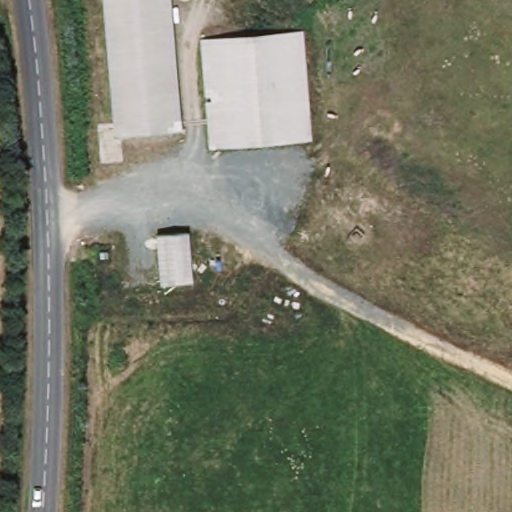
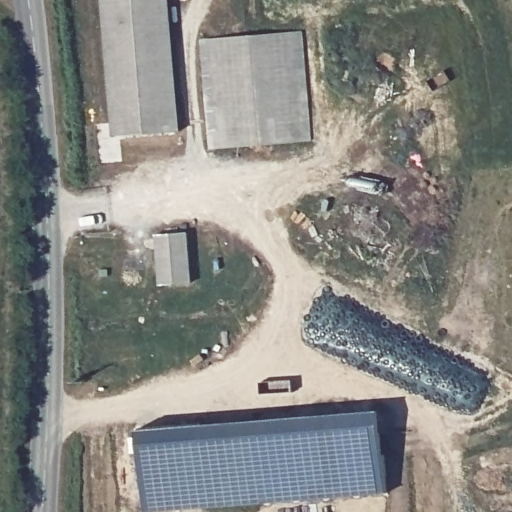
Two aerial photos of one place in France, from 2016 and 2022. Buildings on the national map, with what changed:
unchanged [(113,137),(101,0),(171,0),(181,132),(113,137)]
unchanged [(202,41),(302,32),(310,139),(211,149),(202,41)]
unchanged [(157,236),(189,234),(193,280),(160,283),(157,236)]
new [(146,512),(139,427),(381,408),(387,492),(146,512)]

